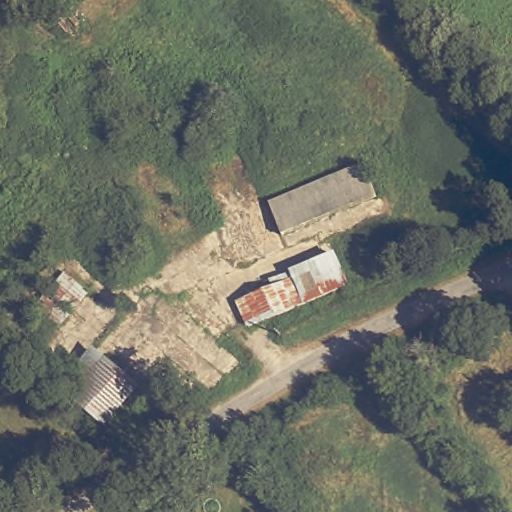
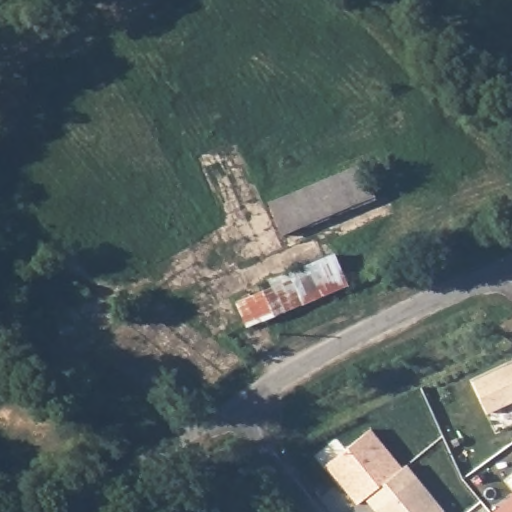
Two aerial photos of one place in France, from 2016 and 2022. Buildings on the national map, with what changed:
unchanged [(277,210),(367,169),(381,200),(290,241),(277,210)]
unchanged [(247,335),(237,307),(295,287),(290,274),(342,254),(360,297),(255,333),(247,335)]
unchanged [(24,325),(69,276),(96,297),(52,348),(24,325)]
unchanged [(57,394),(93,350),(147,391),(112,436),(57,394)]
new [(512,362),(512,403),(487,413),(472,380),(512,362)]
new [(372,427),(404,467),(358,505),(326,465),(372,427)]
new [(445,511),(444,512),(377,512),(376,511),(417,476),(445,511)]
new [(493,512),(512,496),(512,512),(493,512)]
new [(491,512),(489,512),(490,511),(491,512)]

